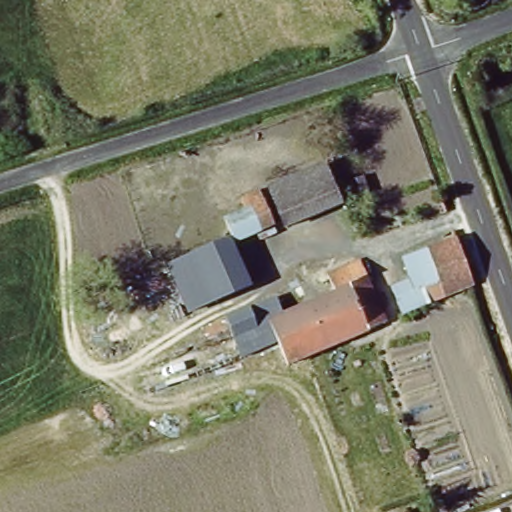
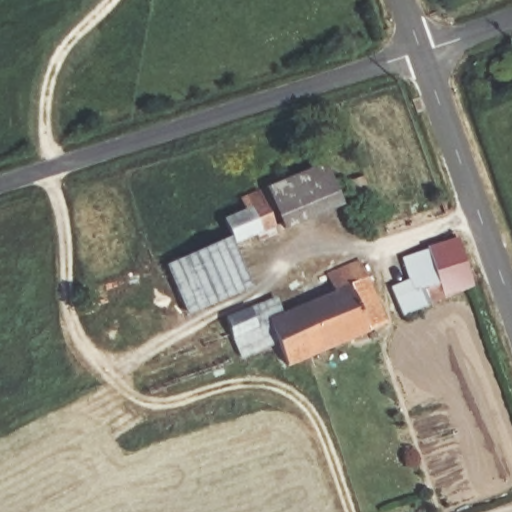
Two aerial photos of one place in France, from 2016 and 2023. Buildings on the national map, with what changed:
unchanged [(346,208),(284,231),(267,188),(326,165),(346,208)]
unchanged [(227,241),(220,218),(241,214),(234,196),(254,189),(277,234),(236,246),(256,286),(185,320),(164,267),(227,241)]
unchanged [(475,288),(404,321),(390,291),(407,282),(404,262),(452,241),(475,288)]
unchanged [(289,371),(277,348),(240,363),(224,317),(276,299),(283,314),(335,300),(323,273),(358,259),(389,325),(289,371)]

